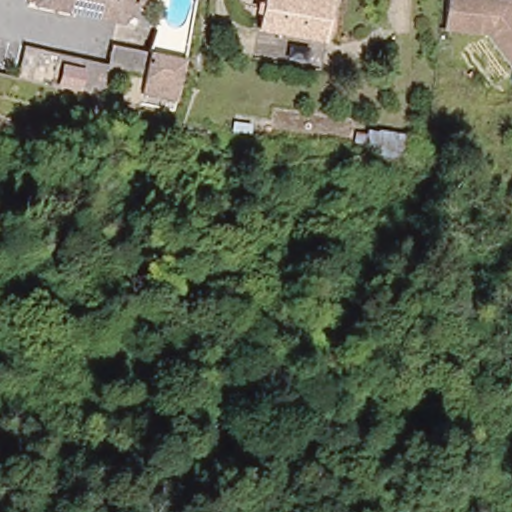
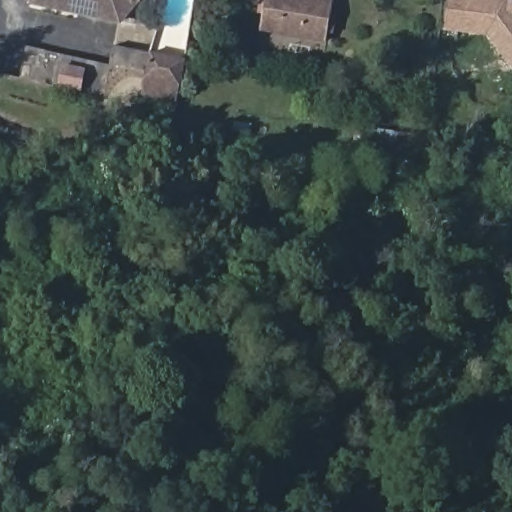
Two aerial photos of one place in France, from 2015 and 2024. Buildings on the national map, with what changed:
unchanged [(110,29),(29,2),(30,0),(135,0),(135,6),(110,29)]
unchanged [(324,40),(257,28),(262,0),(331,0),(330,4),(324,40)]
unchanged [(510,0),(509,4),(512,6),(512,55),(495,33),(446,26),(450,0),(510,0)]
unchanged [(16,69),(24,42),(110,68),(103,91),(102,95),(75,87),(16,69)]
unchanged [(176,101),(141,94),(149,50),(184,59),(176,101)]

